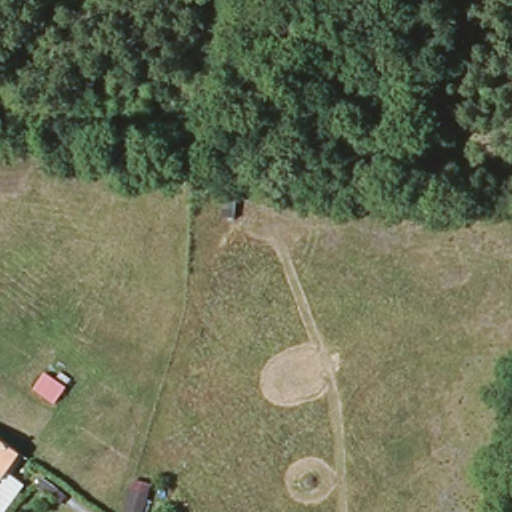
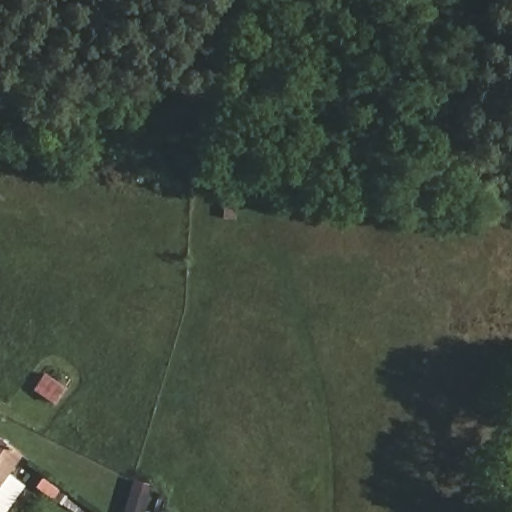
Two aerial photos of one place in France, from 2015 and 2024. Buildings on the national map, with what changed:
unchanged [(48,390),(52,392),(46,400),(32,390),(42,376),(52,383),(48,390)]
unchanged [(21,456),(0,484),(0,441),(21,456)]
unchanged [(144,512),(123,512),(132,486),(151,493),(144,512)]

